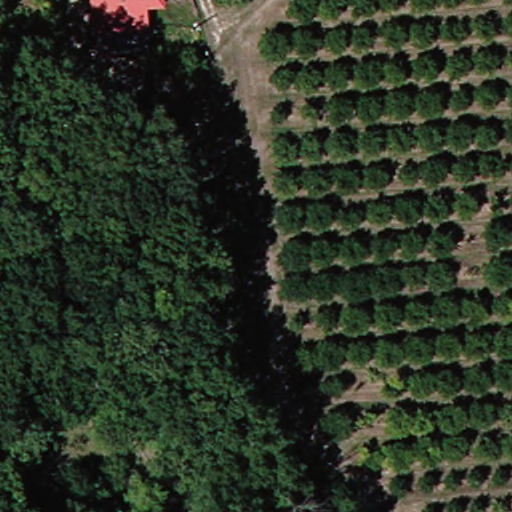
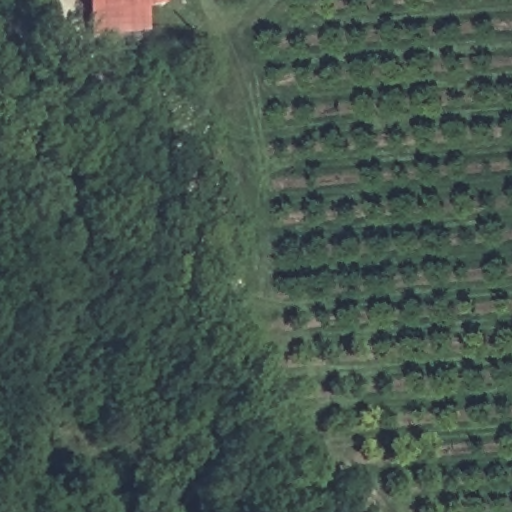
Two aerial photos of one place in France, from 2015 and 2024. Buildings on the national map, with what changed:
unchanged [(161,6),(140,7),(143,47),(95,50),(94,31),(89,32),(86,0),(160,0),(161,6)]

